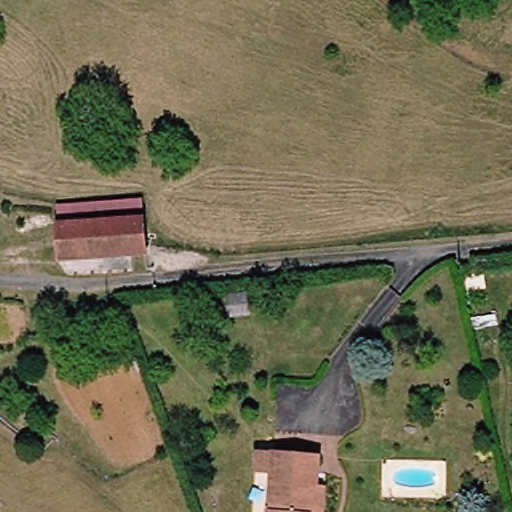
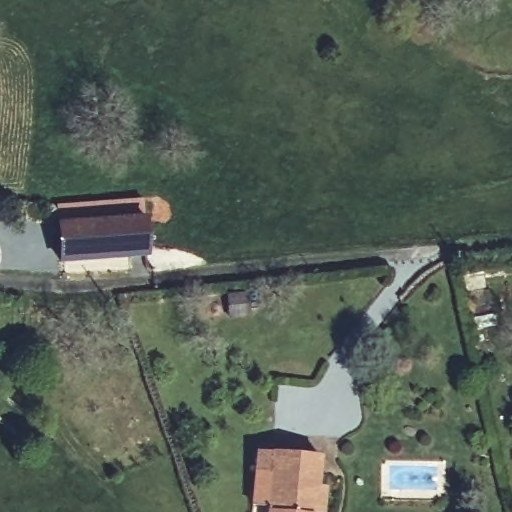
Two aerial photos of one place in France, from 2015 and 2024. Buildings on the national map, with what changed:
unchanged [(142,257),(60,259),(59,226),(141,225),(142,257)]
unchanged [(228,319),(228,297),(255,297),(255,318),(228,319)]
unchanged [(324,512),(269,512),(272,458),(319,461),(317,490),(325,490),(324,512)]

